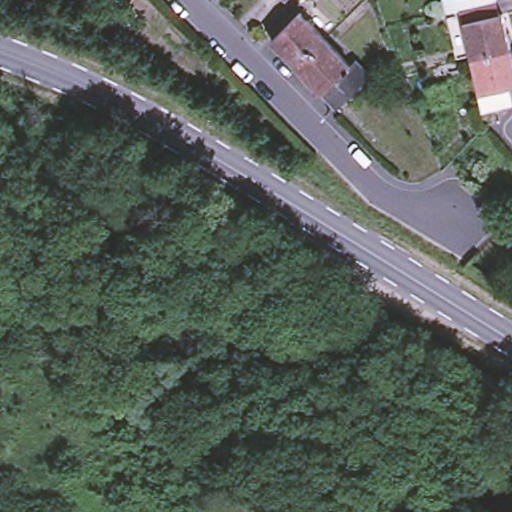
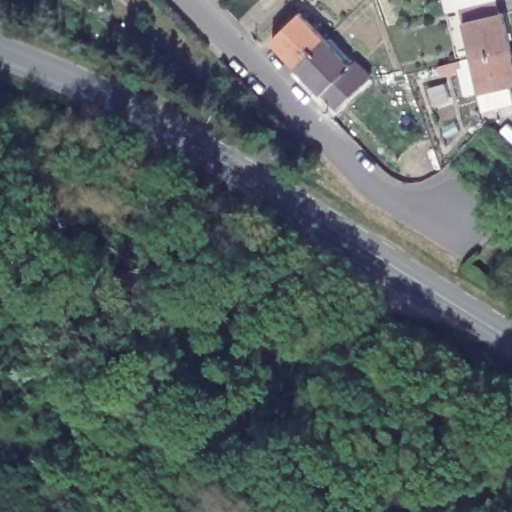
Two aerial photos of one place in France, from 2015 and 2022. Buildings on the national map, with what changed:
unchanged [(445,0),(499,0),(501,11),(505,10),(512,41),(512,46),(473,54),(465,19),(462,3),(447,7),(445,0)]
unchanged [(299,68),(274,43),(303,14),(327,40),(299,68)]
unchanged [(335,105),(325,95),(299,68),(327,40),(353,67),(358,62),(374,79),(338,108),(335,105)]
unchanged [(473,54),(512,46),(512,103),(487,108),(485,103),(482,89),(473,54)]

